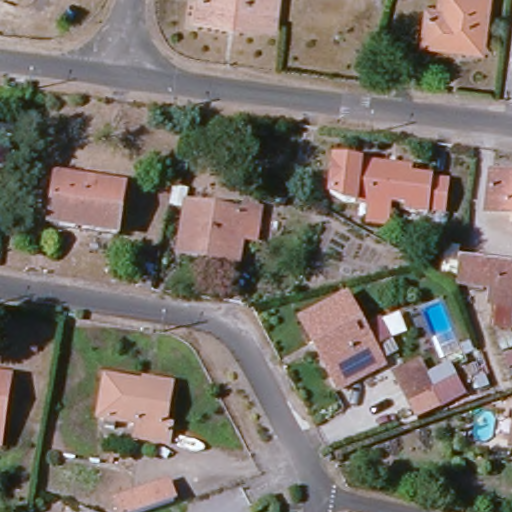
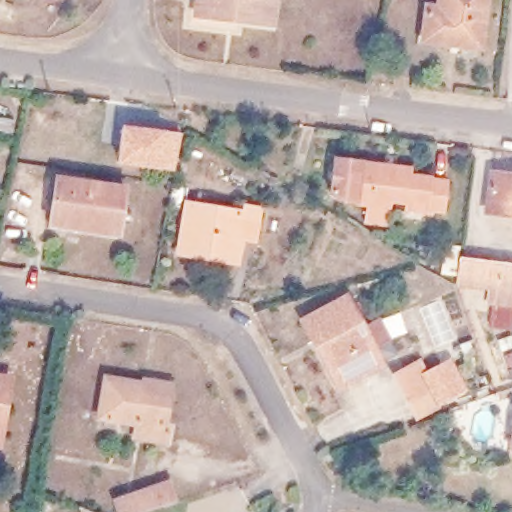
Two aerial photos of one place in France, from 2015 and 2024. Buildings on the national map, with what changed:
unchanged [(199,15),(201,0),(275,0),(272,26),(199,15)]
unchanged [(427,51),(430,20),(442,23),(445,0),(488,0),(482,57),(427,51)]
new [(121,123),(182,132),(175,172),(115,163),(121,123)]
unchanged [(390,231),(358,227),(360,212),(347,210),(333,201),(338,161),(362,164),(397,169),(415,170),(413,181),(448,185),(443,221),(407,217),(408,205),(393,203),(392,215),(390,231)]
unchanged [(512,219),(486,214),(492,175),(512,178),(512,219)]
unchanged [(126,193),(120,234),(50,224),(57,180),(126,193)]
unchanged [(190,262),(173,259),(181,210),(234,219),(236,208),(250,209),(247,242),(232,239),(229,255),(227,268),(190,262)]
unchanged [(497,309),(486,307),(488,294),(456,289),(458,262),(512,269),(512,321),(509,335),(512,343),(512,370),(507,372),(491,333),(497,309)]
unchanged [(306,323),(351,300),(362,294),(375,324),(365,329),(382,370),(338,391),(328,370),(314,340),(306,323)]
unchanged [(411,363),(425,391),(402,402),(388,374),(411,363)]
unchanged [(174,386),(166,437),(134,432),(136,417),(117,414),(115,426),(104,424),(105,412),(99,412),(105,376),(174,386)]
unchanged [(0,446),(0,383),(10,384),(5,427),(2,446),(0,446)]
unchanged [(162,487),(167,503),(142,512),(130,512),(125,499),(162,487)]

